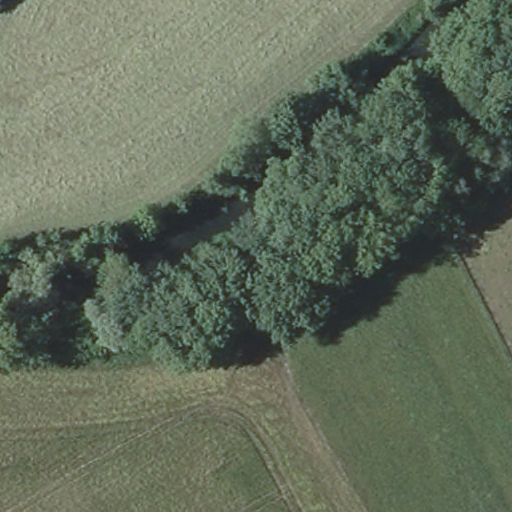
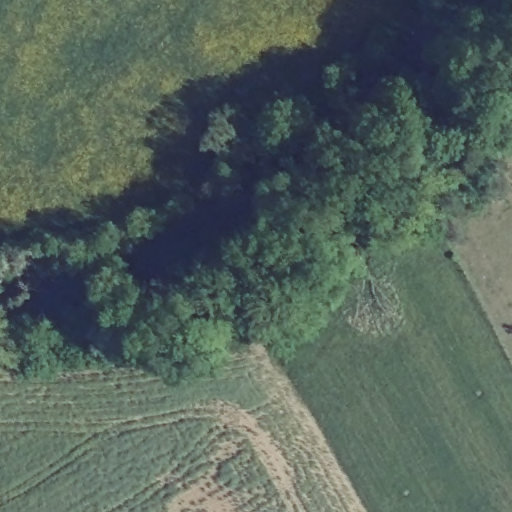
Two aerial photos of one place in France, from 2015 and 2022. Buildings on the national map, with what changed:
[]

